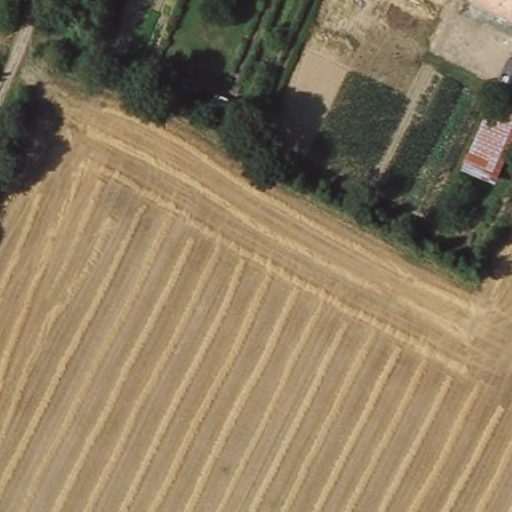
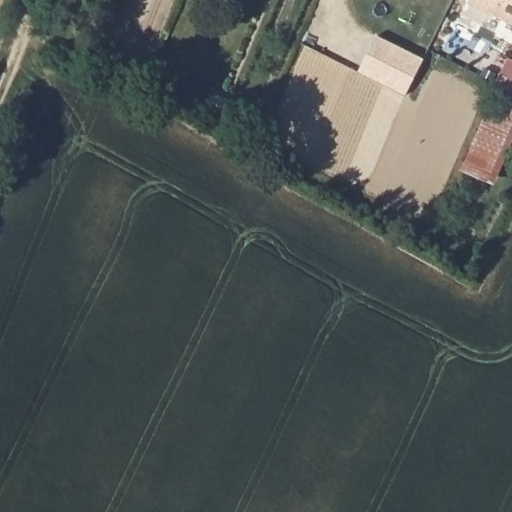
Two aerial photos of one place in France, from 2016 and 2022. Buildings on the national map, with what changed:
unchanged [(474,0),(512,0),(512,21),(474,0)]
new [(424,58),(406,95),(359,71),(377,33),(424,58)]
demolished [(500,46),(512,52),(512,80),(489,69),(500,46)]
new [(512,56),(512,91),(493,82),(508,54),(512,56)]
unchanged [(512,113),(512,129),(486,185),(460,175),(490,104),(512,113)]

